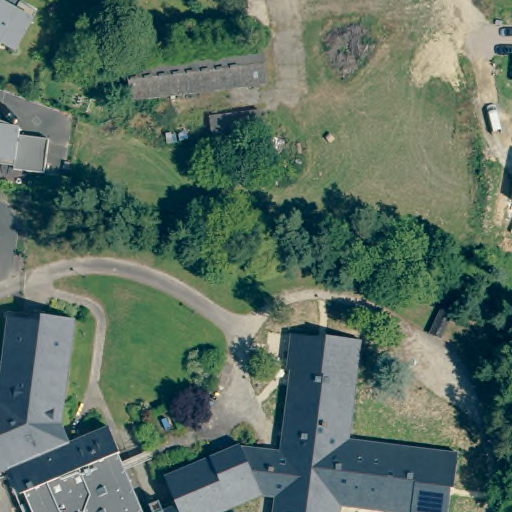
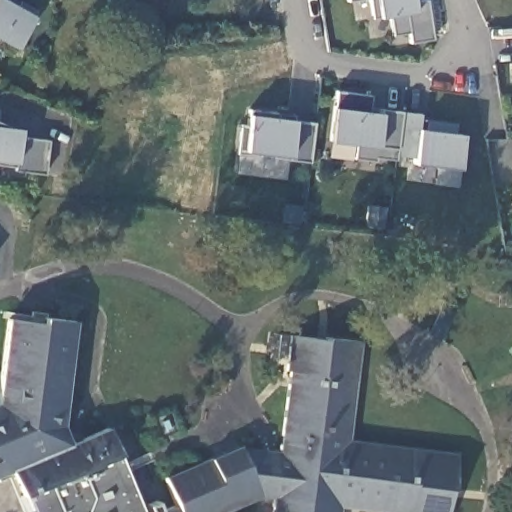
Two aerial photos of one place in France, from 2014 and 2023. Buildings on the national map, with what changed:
unchanged [(13,49),(0,42),(0,0),(13,0),(17,3),(34,12),(13,49)]
new [(355,0),(348,1),(348,0),(355,0)]
new [(420,0),(427,0),(433,39),(411,42),(409,32),(392,35),(388,16),(377,18),(372,18),(370,0),(413,0),(413,1),(420,0)]
unchanged [(250,41),(261,39),(266,81),(207,89),(129,97),(126,56),(250,41)]
new [(434,183),(437,166),(411,163),(413,156),(395,154),(395,159),(375,157),(375,161),(353,158),(355,144),(328,141),(332,108),(335,91),(371,95),(368,110),(381,112),(381,109),(420,114),(419,119),(455,123),(453,132),(462,134),(457,169),(456,186),(434,183)]
new [(290,155),(243,149),(237,149),(239,124),(246,124),(249,109),(294,115),(293,119),(313,123),(308,160),(290,159),(290,155)]
demolished [(258,111),(259,135),(212,140),(209,114),(258,111)]
unchanged [(17,128),(16,134),(31,136),(46,138),(41,172),(26,170),(10,168),(11,164),(0,163),(0,121),(17,128)]
unchanged [(9,319),(40,322),(41,317),(73,321),(61,421),(70,442),(108,424),(121,453),(117,454),(142,512),(33,512),(24,493),(19,494),(7,468),(0,471),(0,380),(9,319)]
unchanged [(176,502),(165,478),(240,444),(280,447),(289,369),(285,367),(291,332),(326,337),(326,333),(362,339),(351,436),(457,449),(452,488),(448,489),(445,512),(389,512),(340,505),(339,512),(273,512),(274,498),(264,497),(227,512),(152,512),(176,502)]

